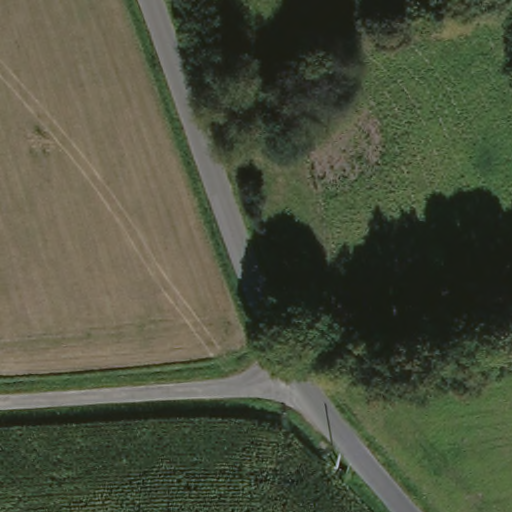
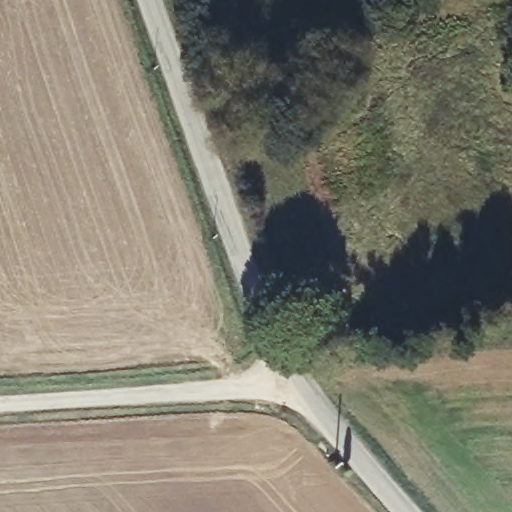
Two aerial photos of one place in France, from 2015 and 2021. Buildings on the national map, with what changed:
[]

